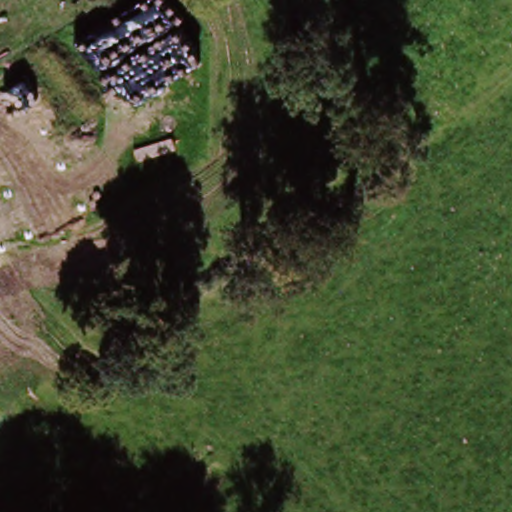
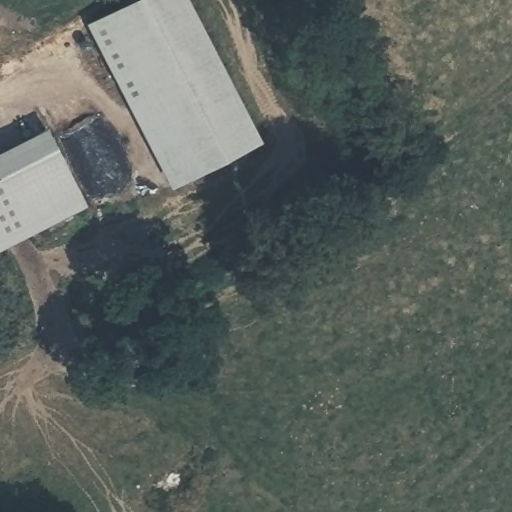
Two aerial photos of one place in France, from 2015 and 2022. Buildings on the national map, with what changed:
new [(92,27),(147,0),(191,0),(263,145),(174,189),(92,27)]
unchanged [(87,207),(0,252),(0,156),(47,131),(87,207)]

